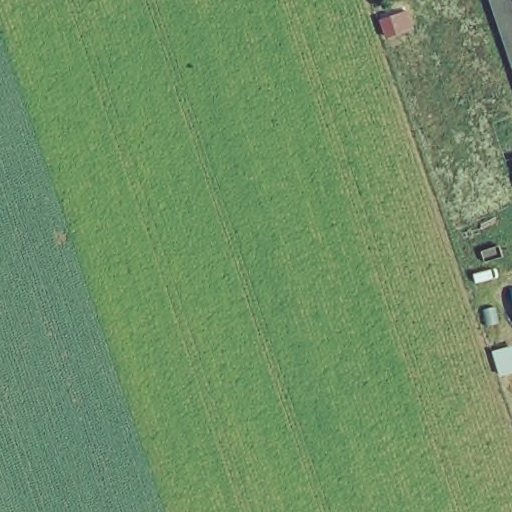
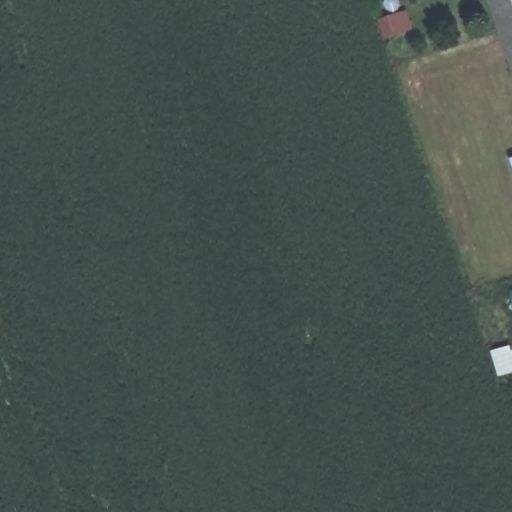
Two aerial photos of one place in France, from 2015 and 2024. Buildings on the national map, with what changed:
unchanged [(512,62),(493,0),(512,0),(512,62)]

